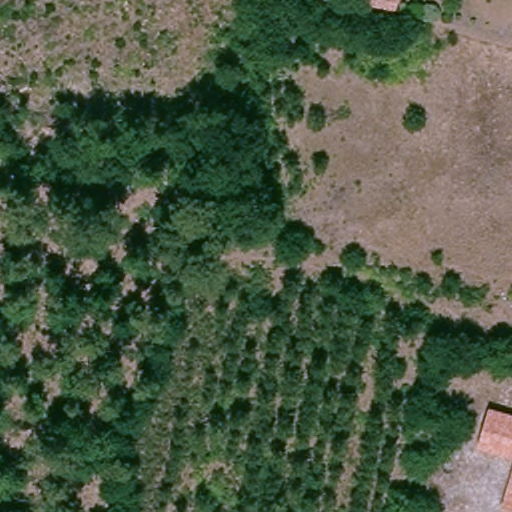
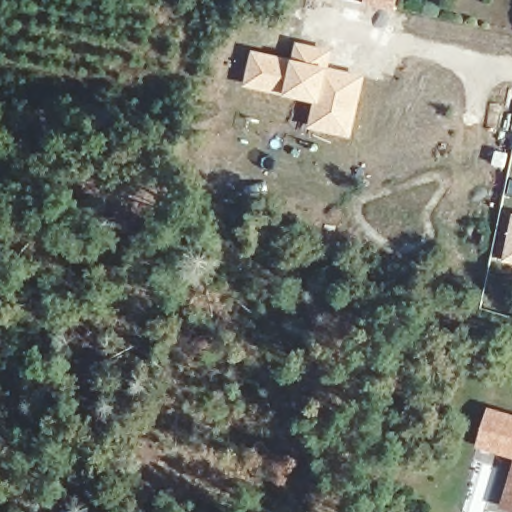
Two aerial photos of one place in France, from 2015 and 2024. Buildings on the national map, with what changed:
unchanged [(393,1),(387,0),(393,0),(393,1)]
new [(251,48),(290,57),(295,40),(332,49),(329,66),(364,75),(349,138),(307,127),(314,103),(241,85),(251,48)]
new [(512,264),(500,261),(512,212),(512,264)]
unchanged [(489,407),(512,415),(512,458),(479,448),(489,407)]
unchanged [(512,471),(512,511),(501,507),(512,471)]

